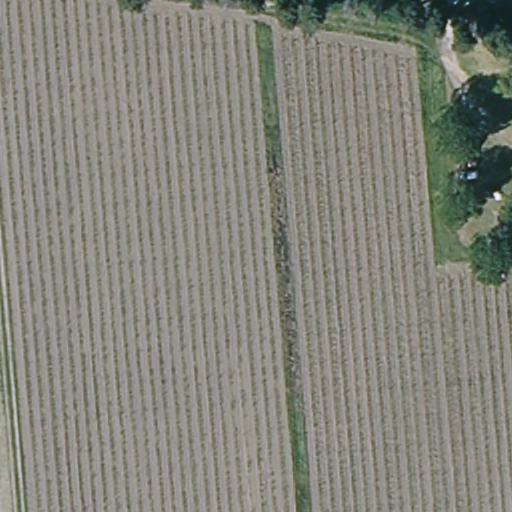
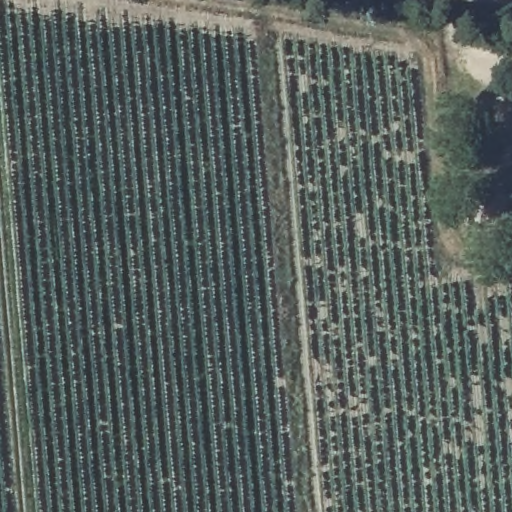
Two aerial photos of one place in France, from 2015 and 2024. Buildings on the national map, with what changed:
[]

